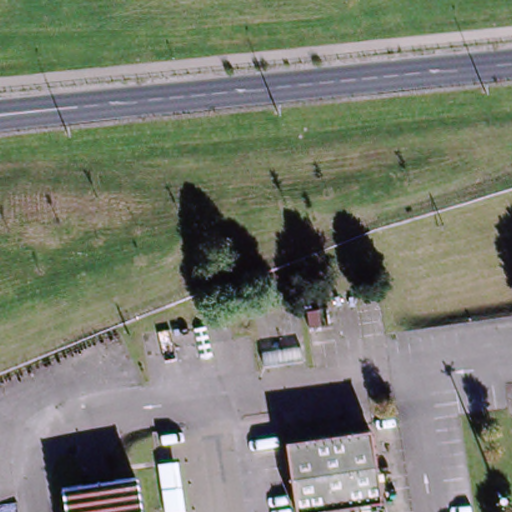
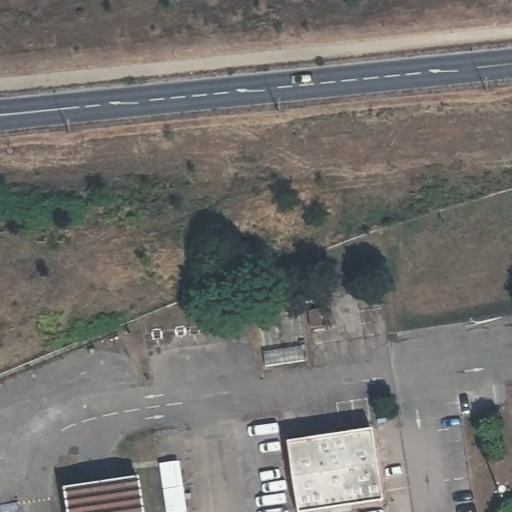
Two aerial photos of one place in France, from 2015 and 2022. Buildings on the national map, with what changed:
unchanged [(369,430),(381,502),(320,512),(294,512),(284,442),(369,430)]
unchanged [(63,487),(136,476),(141,512),(67,512),(63,487)]

